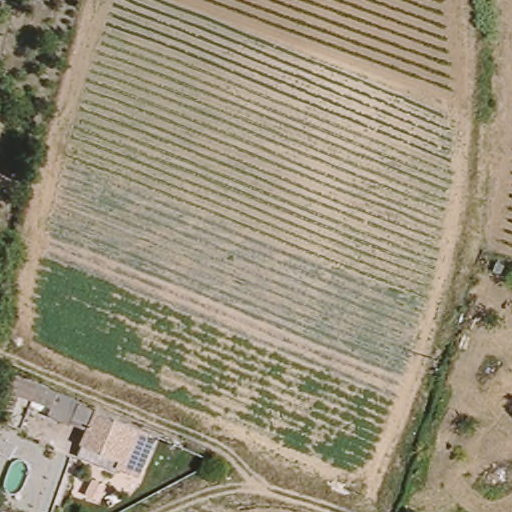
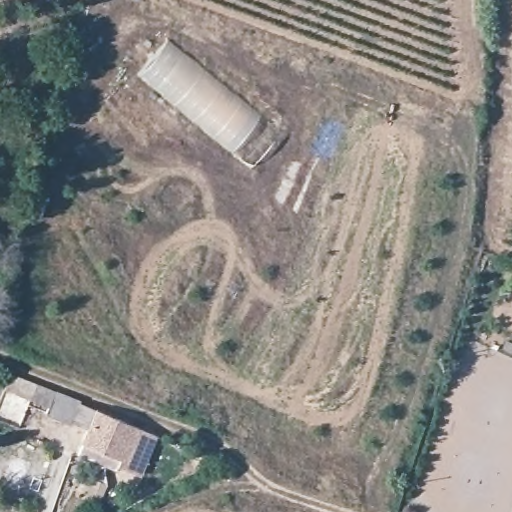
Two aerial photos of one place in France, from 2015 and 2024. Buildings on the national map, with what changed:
new [(252,168),(138,77),(167,41),(278,135),(252,168)]
unchanged [(34,391),(41,373),(81,391),(69,415),(45,404),(48,397),(34,391)]
unchanged [(66,466),(78,440),(87,443),(101,409),(140,427),(117,486),(66,466)]

